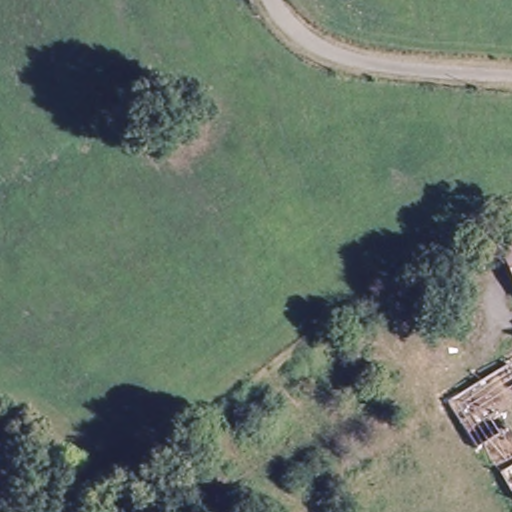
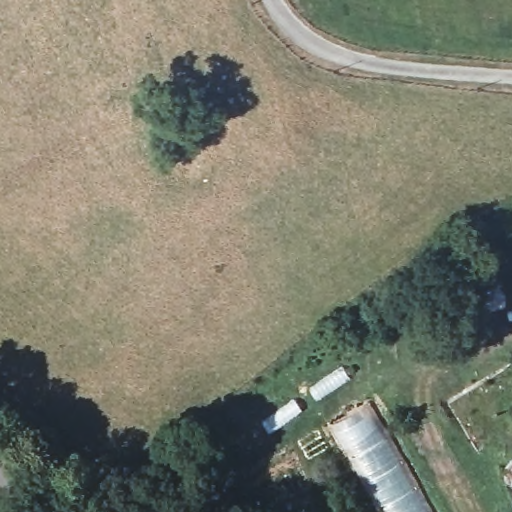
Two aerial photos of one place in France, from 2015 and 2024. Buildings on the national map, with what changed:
demolished [(497,252),(512,245),(512,285),(497,252)]
new [(334,424),(369,403),(430,512),(382,512),(334,424)]

